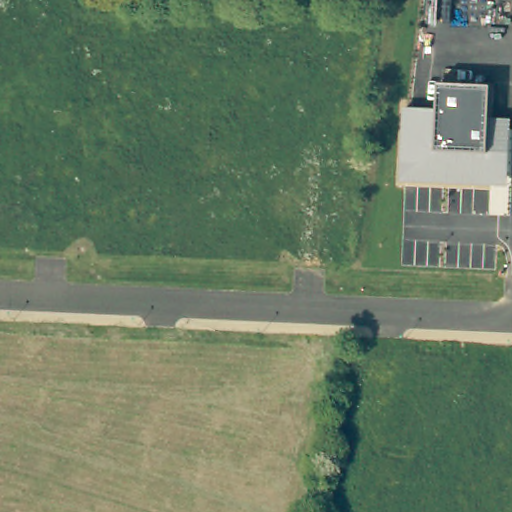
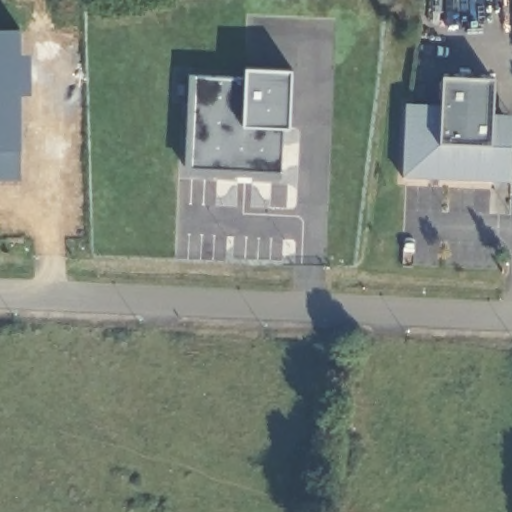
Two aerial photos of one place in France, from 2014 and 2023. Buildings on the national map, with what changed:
new [(21,180),(0,180),(0,27),(18,27),(21,180)]
new [(290,126),(285,126),(282,177),(185,172),(190,76),(246,79),(246,67),(292,69),(290,126)]
unchanged [(403,181),(408,106),(439,107),(440,82),(495,84),(494,117),(512,118),(512,143),(510,185),(403,181)]

